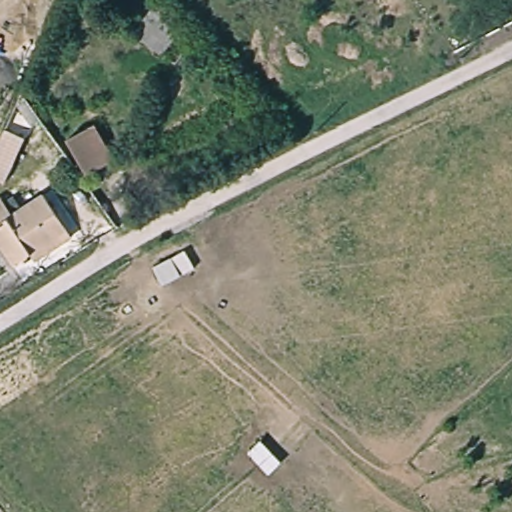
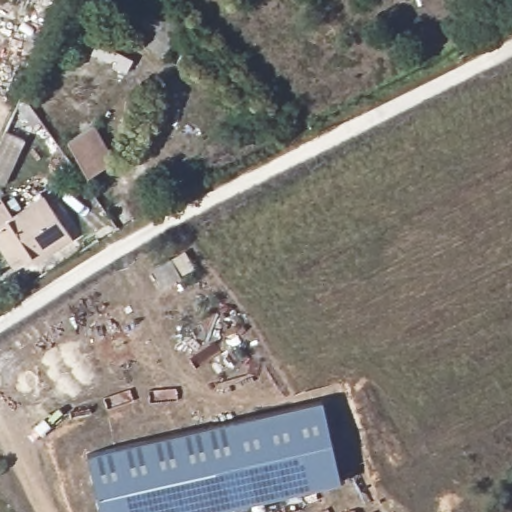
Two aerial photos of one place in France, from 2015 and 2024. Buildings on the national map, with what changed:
unchanged [(178,25),(161,51),(147,41),(162,14),(178,25)]
unchanged [(118,160),(86,176),(66,143),(96,127),(118,160)]
unchanged [(65,232),(8,272),(0,260),(0,221),(40,194),(65,232)]
new [(339,481),(206,512),(100,512),(88,453),(322,400),(339,481)]

